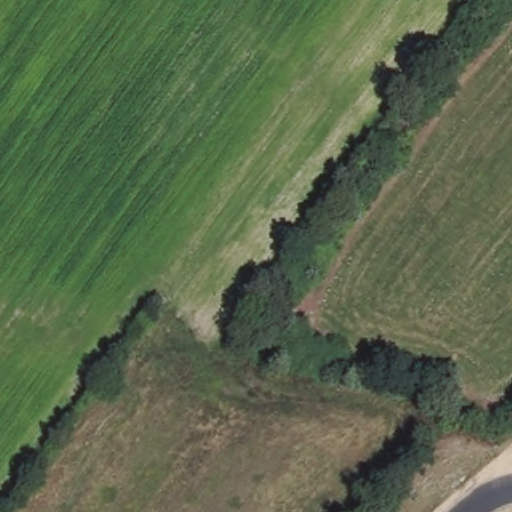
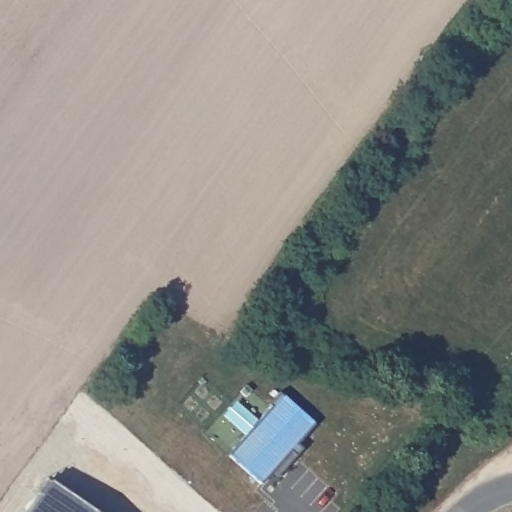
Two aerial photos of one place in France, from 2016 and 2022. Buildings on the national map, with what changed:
new [(268,475),(260,484),(227,455),(270,407),(267,405),(278,392),(314,425),(296,444),(302,449),(295,456),(273,480),(268,475)]

